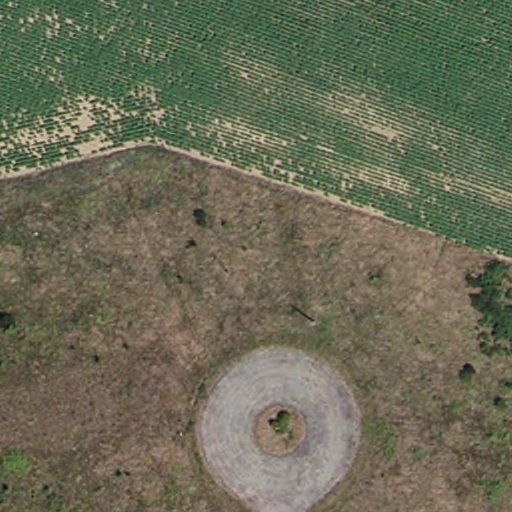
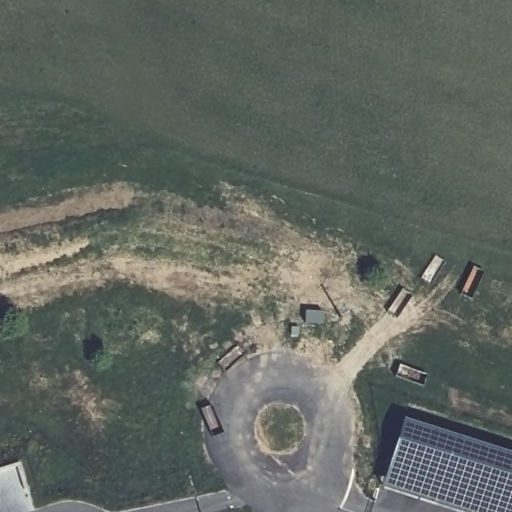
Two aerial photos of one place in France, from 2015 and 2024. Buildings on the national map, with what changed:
new [(401,420),(512,455),(512,512),(462,512),(382,486),(401,420)]

